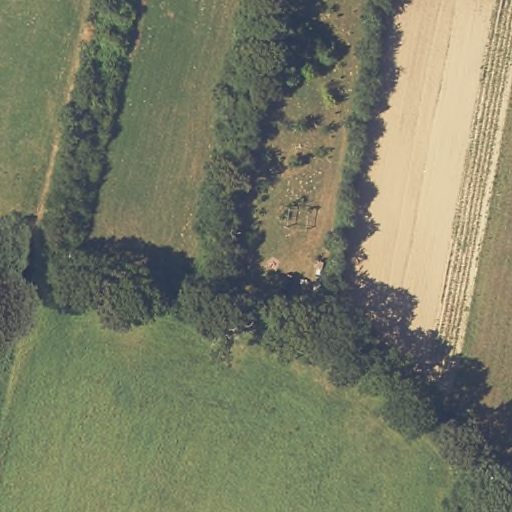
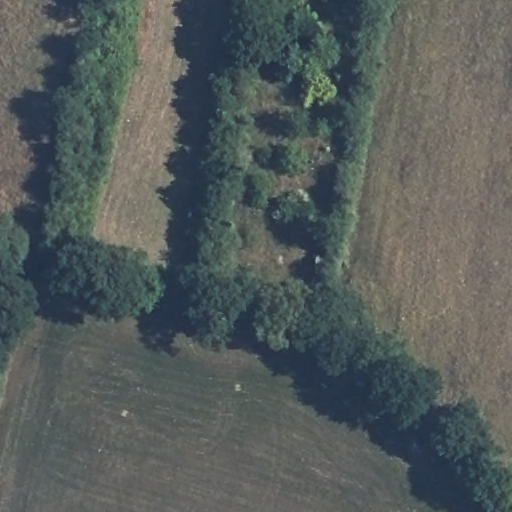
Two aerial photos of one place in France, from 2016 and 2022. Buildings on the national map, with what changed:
unchanged [(71,251),(63,275),(40,269),(47,245),(71,251)]

